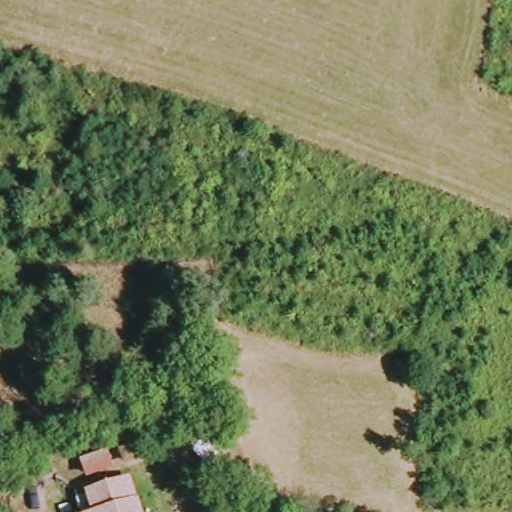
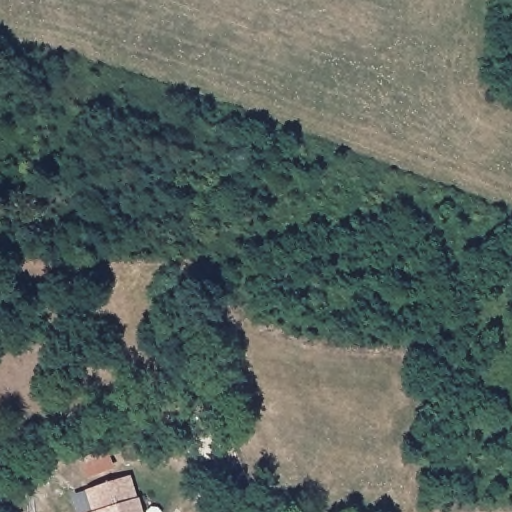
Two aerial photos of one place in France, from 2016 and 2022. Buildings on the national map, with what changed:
unchanged [(82,462),(108,453),(115,471),(88,481),(82,462)]
unchanged [(132,479),(139,502),(142,512),(93,512),(87,493),(132,479)]

